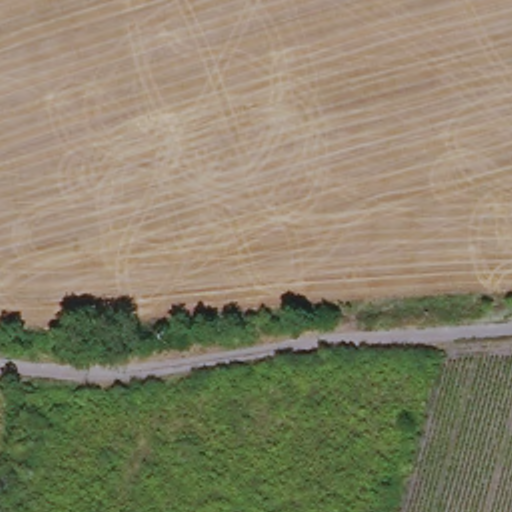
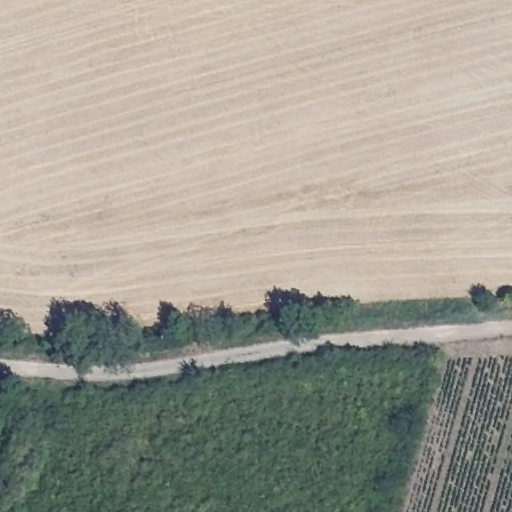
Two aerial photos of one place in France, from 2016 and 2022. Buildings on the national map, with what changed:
[]

